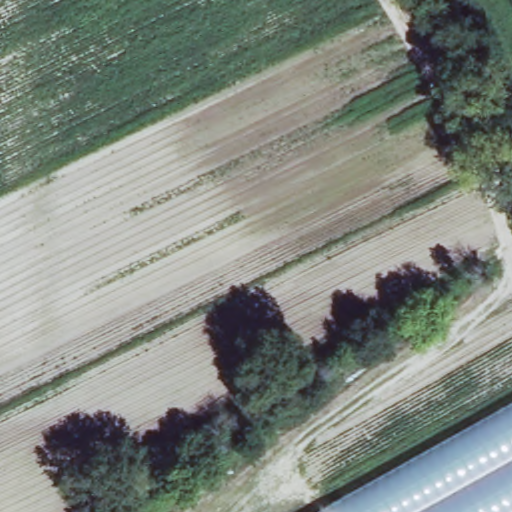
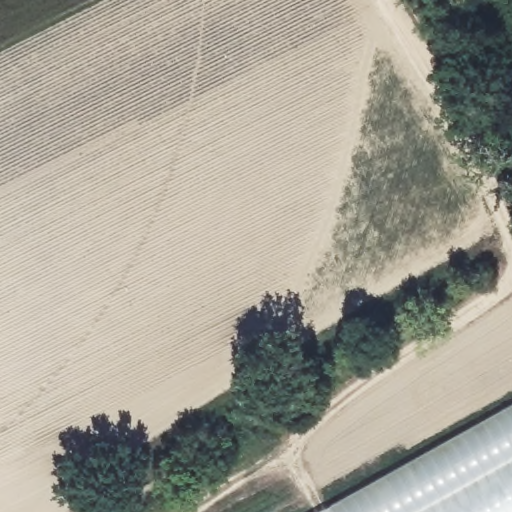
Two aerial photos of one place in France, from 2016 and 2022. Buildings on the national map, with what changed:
unchanged [(321,512),(512,407),(512,512),(321,512)]

